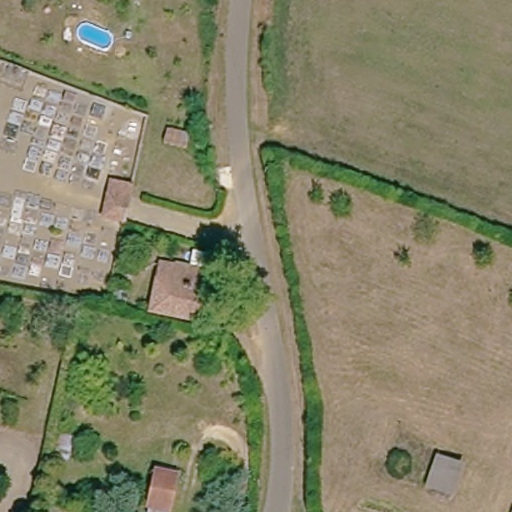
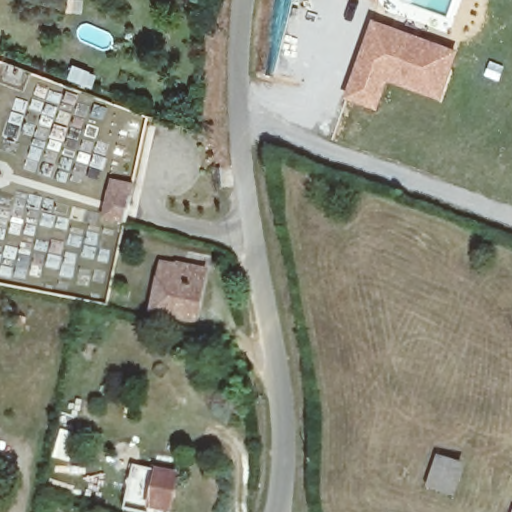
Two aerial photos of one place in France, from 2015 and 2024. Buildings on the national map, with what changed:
new [(377,1),(373,0),(378,0),(377,1)]
new [(457,50),(440,101),(386,82),(376,109),(342,99),(370,19),(457,50)]
unchanged [(192,153),(172,145),(177,130),(197,138),(192,153)]
unchanged [(103,215),(110,182),(131,187),(124,220),(103,215)]
unchanged [(202,330),(159,322),(164,288),(180,290),(182,272),(209,276),(202,330)]
unchanged [(459,499),(436,492),(442,465),(465,472),(459,499)]
unchanged [(172,512),(161,510),(168,476),(189,481),(186,499),(191,500),(190,512),(172,512)]

